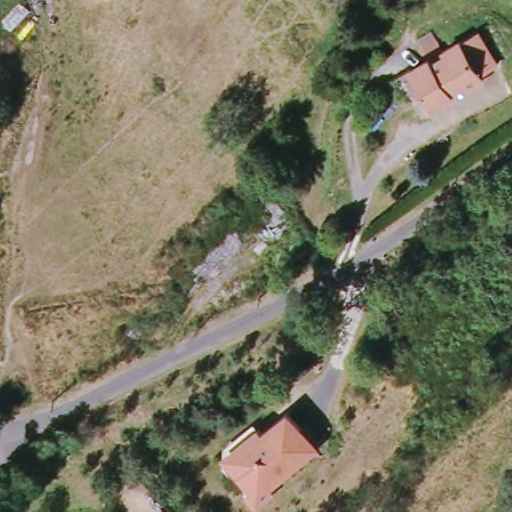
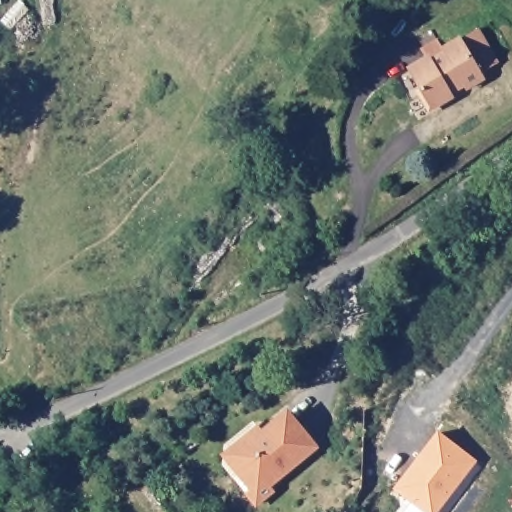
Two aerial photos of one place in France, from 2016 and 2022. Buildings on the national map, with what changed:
unchanged [(441,57),(437,51),(479,27),(512,81),(512,90),(485,108),(469,84),(455,95),(461,103),(435,119),(408,77),(441,57)]
unchanged [(267,506),(256,497),(260,492),(235,470),(235,457),(257,432),(262,436),(285,412),(300,425),(304,421),(322,437),(318,441),(276,486),(281,490),(267,506)]
new [(475,461),(438,512),(424,512),(394,490),(438,431),(475,461)]

